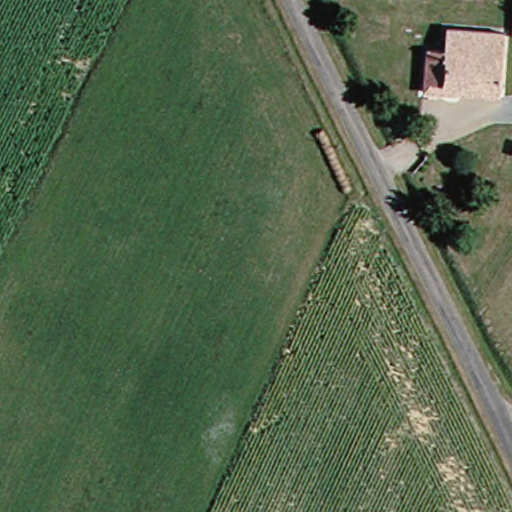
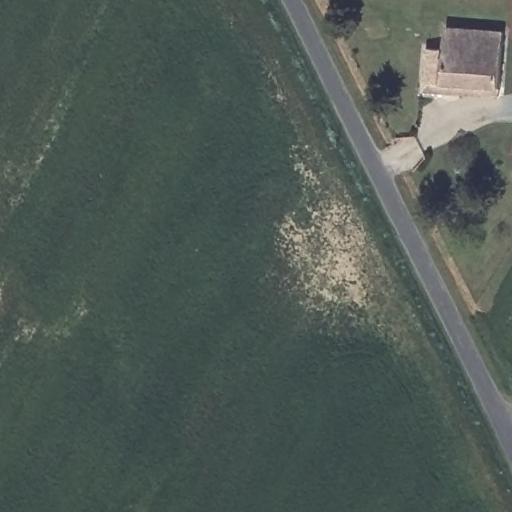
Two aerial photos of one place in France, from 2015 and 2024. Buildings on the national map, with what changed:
unchanged [(447,94),(430,94),(428,52),(445,51),(445,36),(501,34),(502,78),(502,93),(447,94)]

